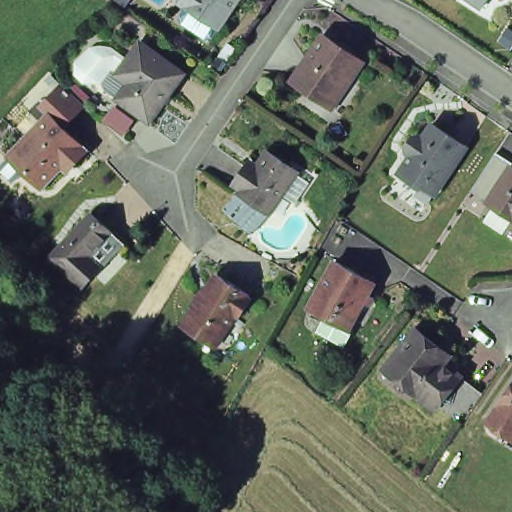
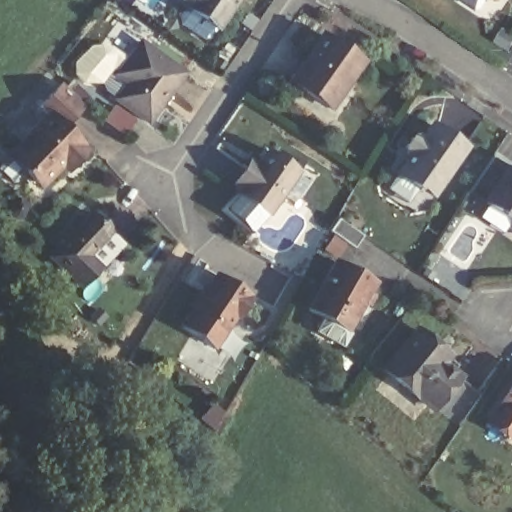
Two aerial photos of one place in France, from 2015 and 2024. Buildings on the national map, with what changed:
unchanged [(202,34),(177,18),(178,13),(184,4),(182,3),(184,0),(231,0),(224,11),(215,25),(214,24),(210,32),(202,34)]
unchanged [(479,7),(468,0),(484,0),(479,7)]
unchanged [(324,104),(285,78),(316,33),(354,59),(324,104)]
unchanged [(152,127),(131,111),(124,106),(124,104),(112,96),(133,67),(147,48),(165,61),(188,78),(152,127)]
unchanged [(61,128),(80,146),(74,152),(76,156),(77,161),(73,165),(68,166),(64,164),(60,161),(55,167),(23,140),(46,115),(37,107),(59,84),(82,106),(61,128)]
unchanged [(423,187),(402,173),(415,155),(412,154),(410,147),(417,137),(421,136),(427,138),(435,124),(469,146),(440,190),(427,181),(423,187)]
unchanged [(36,187),(5,158),(23,140),(55,167),(36,187)]
unchanged [(295,171),(266,215),(237,197),(237,189),(247,172),(250,174),(265,152),(295,171)]
unchanged [(506,219),(481,200),(507,164),(512,167),(512,227),(505,221),(506,219)]
unchanged [(89,218),(92,216),(97,221),(122,246),(98,270),(80,288),(50,258),(87,220),(87,219),(89,218)]
unchanged [(340,341),(312,326),(320,313),(305,304),(330,258),(370,280),(344,327),(347,328),(340,341)]
unchanged [(202,293),(216,275),(245,296),(247,301),(235,316),(231,313),(209,343),(180,322),(192,306),(191,304),(200,292),(202,293)]
unchanged [(370,368),(402,327),(420,341),(435,352),(430,361),(440,369),(417,399),(412,403),(370,368)]
unchanged [(417,399),(440,369),(470,390),(447,422),(417,399)]
unchanged [(485,418),(512,378),(512,433),(510,435),(485,418)]

